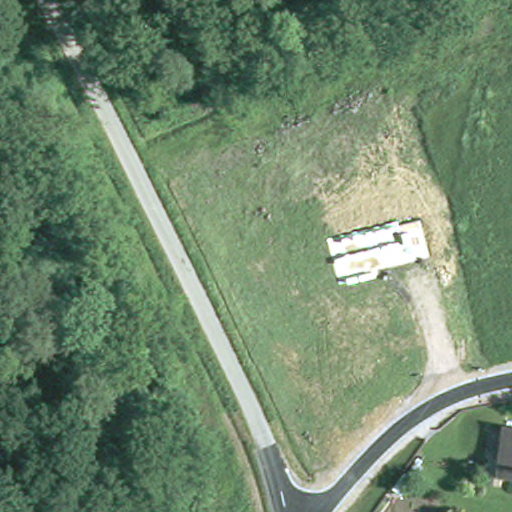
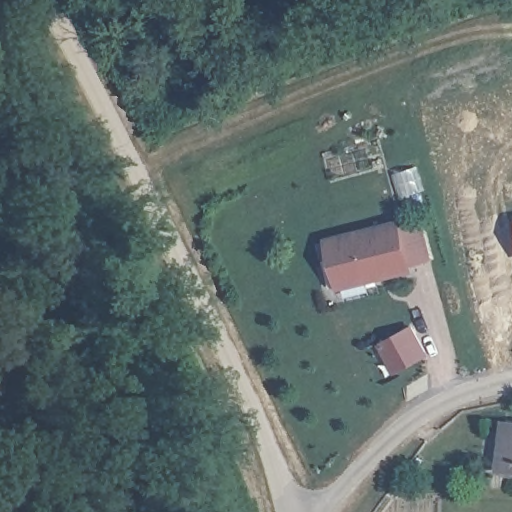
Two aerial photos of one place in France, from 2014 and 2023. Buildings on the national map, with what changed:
new [(433,260),(412,266),(412,271),(336,290),(324,240),(400,220),(401,225),(422,219),(433,260)]
new [(428,356),(394,374),(377,343),(412,325),(428,356)]
unchanged [(512,433),(512,473),(502,472),(507,432),(512,433)]

